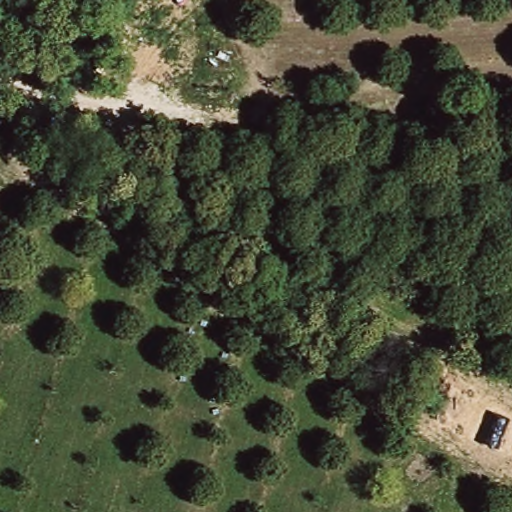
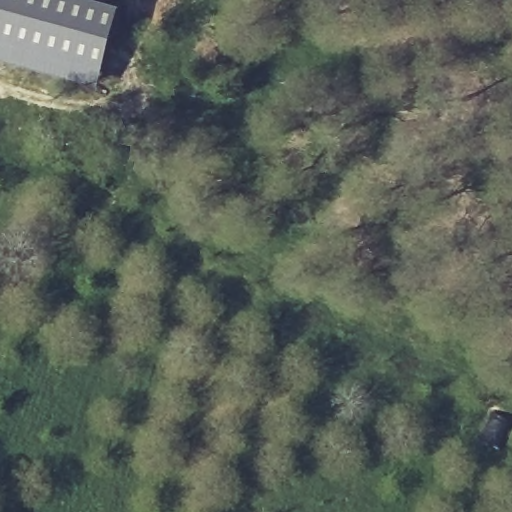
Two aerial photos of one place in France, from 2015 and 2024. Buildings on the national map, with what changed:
new [(101,85),(0,57),(0,0),(111,0),(125,4),(101,85)]
demolished [(180,65),(141,61),(146,9),(186,8),(180,65)]

